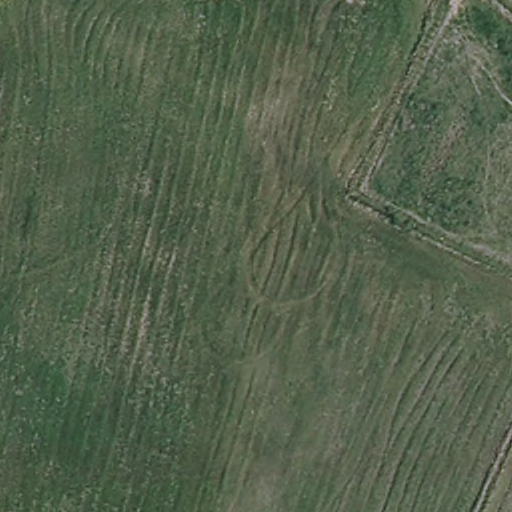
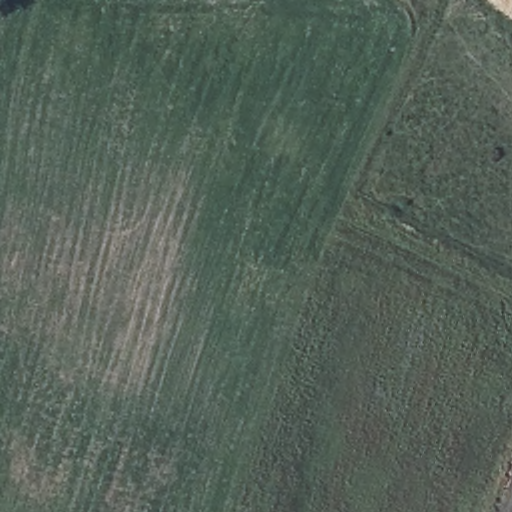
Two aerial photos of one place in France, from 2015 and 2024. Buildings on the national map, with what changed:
[]

